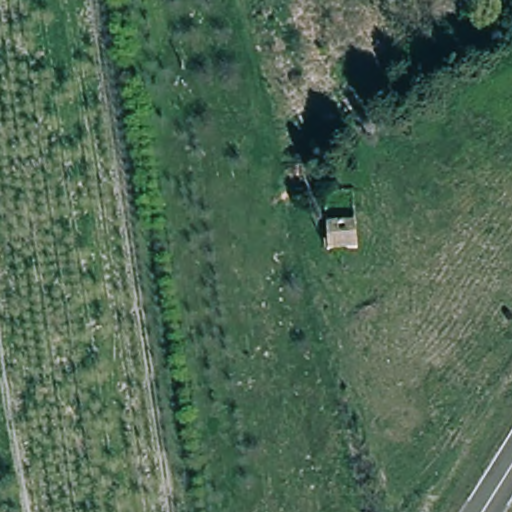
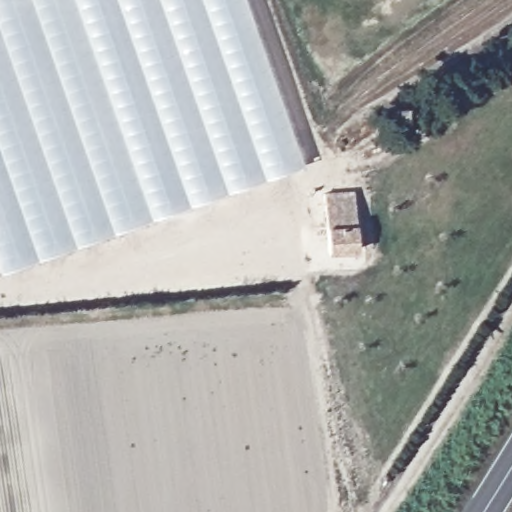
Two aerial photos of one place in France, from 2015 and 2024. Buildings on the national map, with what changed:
new [(0,268),(0,0),(244,0),(301,162),(0,268)]
unchanged [(329,250),(327,196),(356,195),(362,247),(329,250)]

